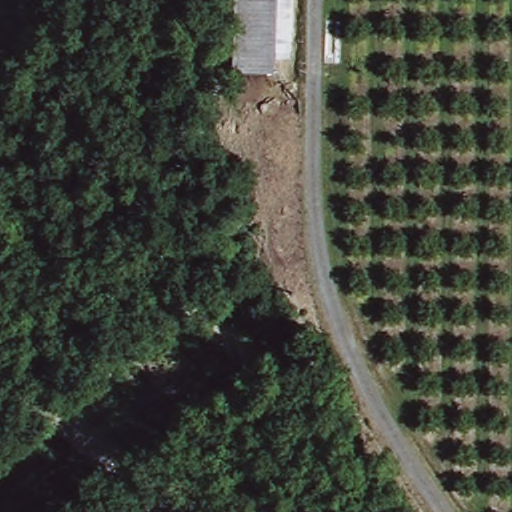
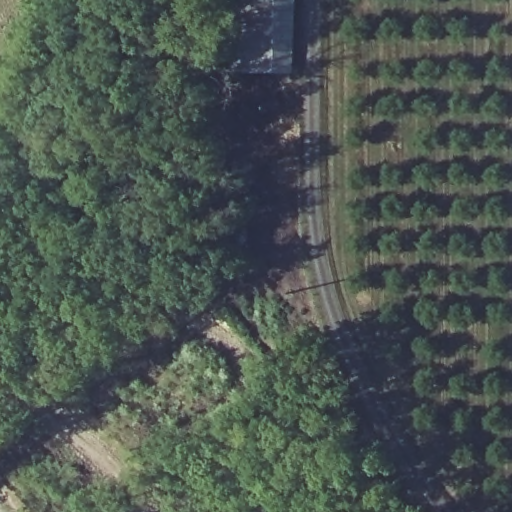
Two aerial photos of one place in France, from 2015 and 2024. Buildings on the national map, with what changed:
unchanged [(275,60),(275,72),(233,71),(235,0),(294,0),(292,61),(275,60)]

